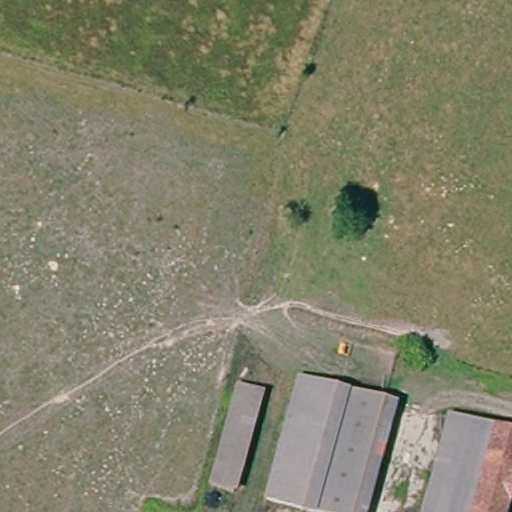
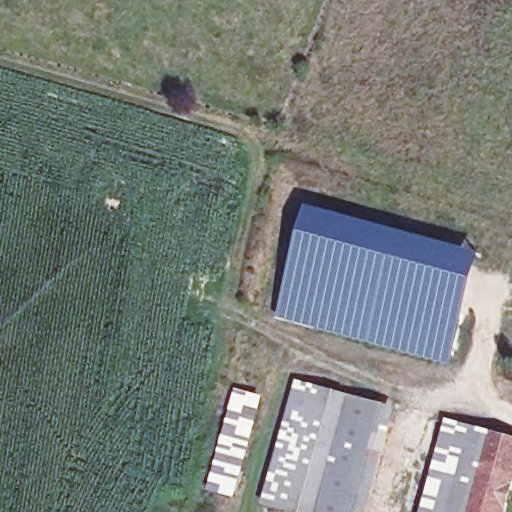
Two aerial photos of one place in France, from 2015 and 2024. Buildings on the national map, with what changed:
new [(309,205),(484,254),(453,365),(279,319),(309,205)]
unchanged [(362,512),(289,512),(274,508),(305,384),(389,406),(362,512)]
unchanged [(238,494),(219,488),(209,486),(237,385),(243,387),(265,393),(238,494)]
unchanged [(446,425),(496,440),(478,512),(422,512),(446,425)]
unchanged [(512,443),(512,508),(511,512),(478,512),(496,440),(512,443)]

